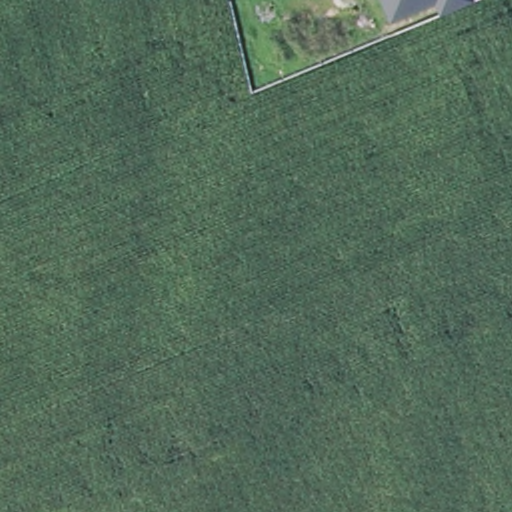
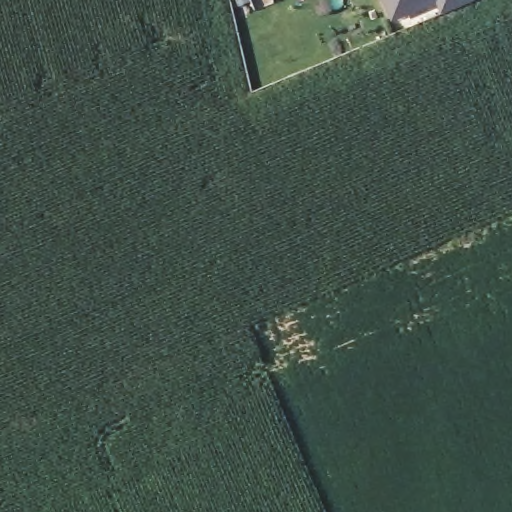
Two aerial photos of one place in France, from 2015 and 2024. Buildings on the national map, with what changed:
unchanged [(386,0),(417,0),(391,11),(386,0)]
unchanged [(439,0),(455,0),(441,6),(439,0)]

